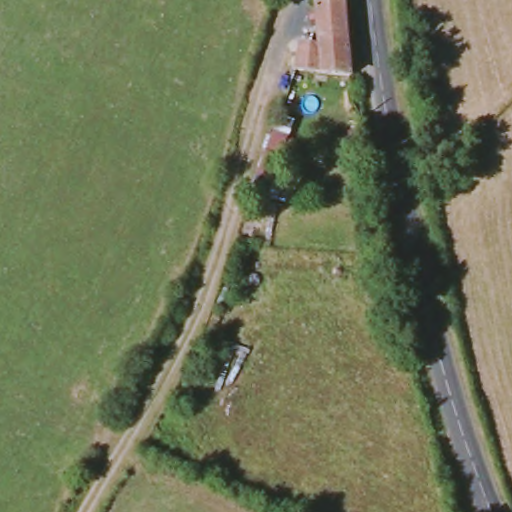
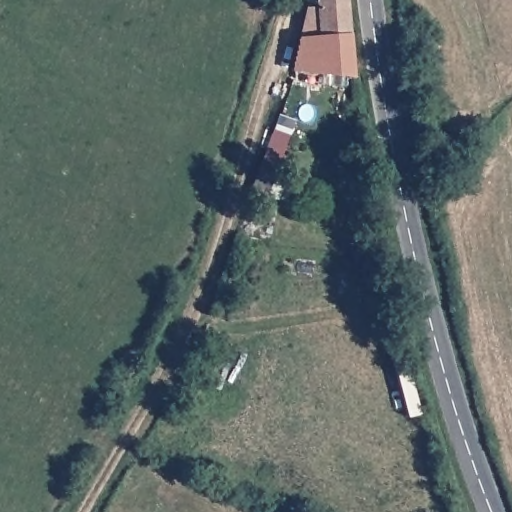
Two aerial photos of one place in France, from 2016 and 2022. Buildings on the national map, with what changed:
unchanged [(300,53),(311,53),(318,54),(312,6),(324,6),(324,0),(346,0),(353,75),(321,76),(296,75),(296,56),(297,54),(300,53)]
unchanged [(252,178),(265,183),(260,197),(248,193),(252,178)]

